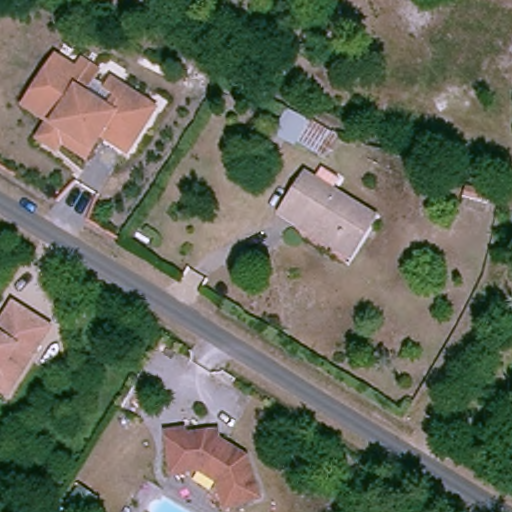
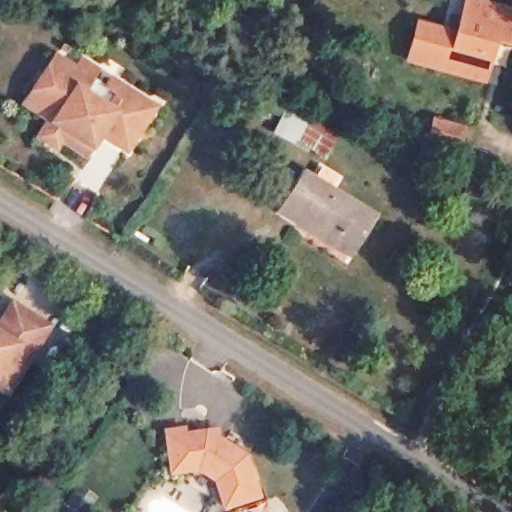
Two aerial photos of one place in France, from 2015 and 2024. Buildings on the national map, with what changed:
new [(463,0),(492,0),(512,5),(512,41),(511,47),(497,45),(487,84),(405,62),(417,17),(456,28),(463,0)]
demolished [(507,52),(492,49),(482,55),(476,81),(437,72),(453,0),(458,0),(512,12),(512,32),(507,52)]
unchanged [(37,141),(42,133),(48,125),(33,115),(22,109),(52,60),(63,66),(75,73),(80,65),(97,75),(83,96),(105,110),(112,97),(102,91),(107,81),(153,110),(126,154),(100,138),(86,160),(61,145),(56,153),(37,141)]
demolished [(421,116),(414,135),(382,123),(388,104),(421,116)]
unchanged [(324,160),(300,143),(295,149),(266,133),(283,105),(340,135),(324,160)]
new [(468,124),(461,152),(426,142),(433,115),(468,124)]
unchanged [(277,211),(302,171),(374,215),(348,255),(329,244),(293,221),(277,211)]
unchanged [(11,397),(0,390),(0,334),(16,308),(52,330),(11,397)]
unchanged [(262,484),(233,503),(217,478),(200,467),(175,476),(161,438),(200,425),(202,431),(209,436),(212,432),(239,450),(262,484)]

